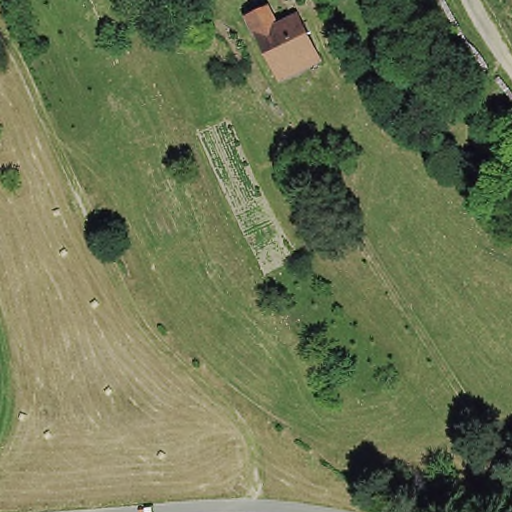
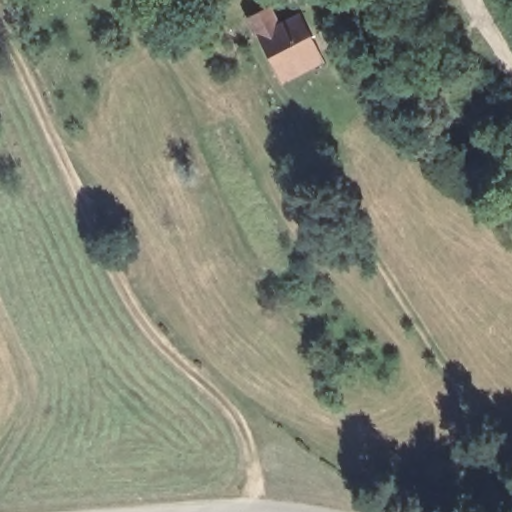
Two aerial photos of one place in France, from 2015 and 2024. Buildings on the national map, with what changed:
unchanged [(290,3),(288,0),(294,0),(290,3)]
unchanged [(263,51),(262,52),(253,32),(271,23),(281,43),(286,41),(303,32),(322,70),(282,89),(263,51)]

